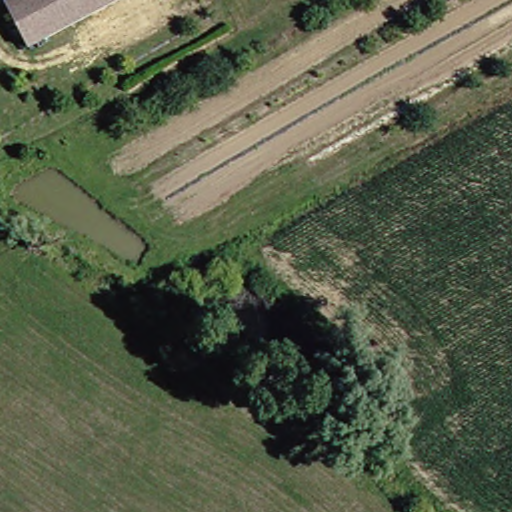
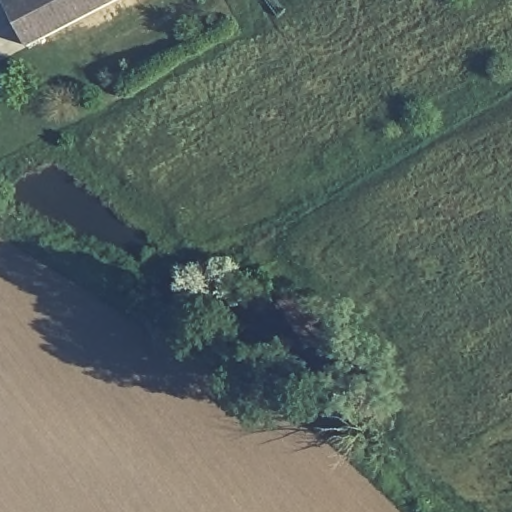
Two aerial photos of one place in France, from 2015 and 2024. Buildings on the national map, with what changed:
unchanged [(10,3),(17,0),(123,0),(34,48),(10,3)]

